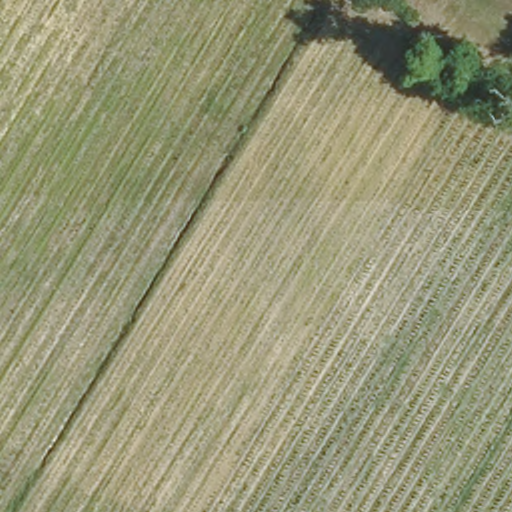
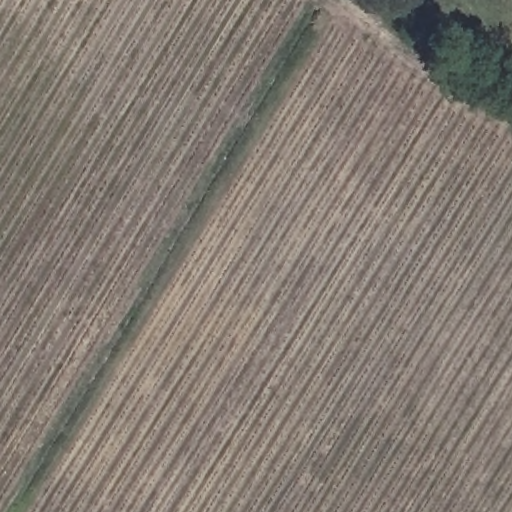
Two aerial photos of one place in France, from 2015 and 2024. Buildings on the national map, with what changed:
[]

